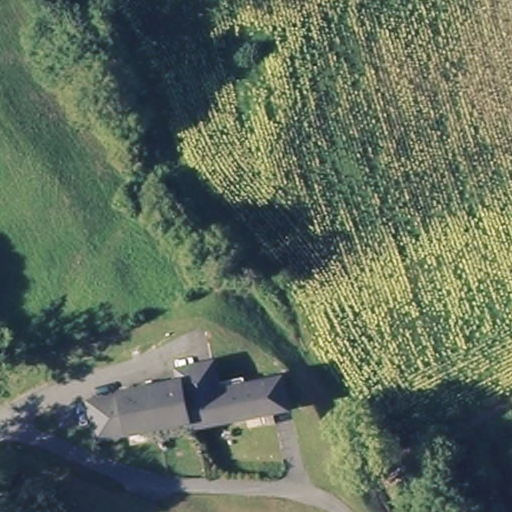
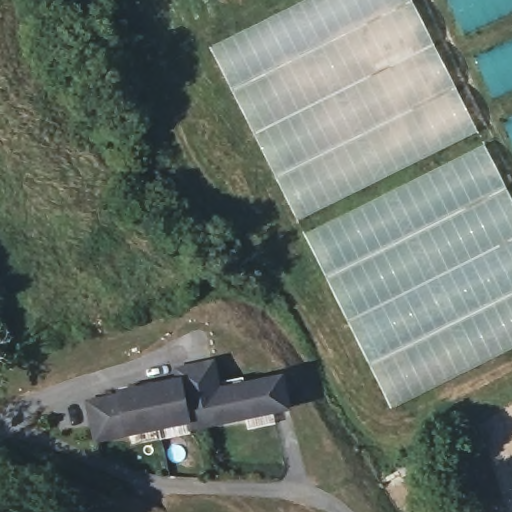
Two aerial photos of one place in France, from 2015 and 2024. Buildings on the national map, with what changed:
new [(480,132),(299,221),(212,49),(308,0),(412,0),(480,132)]
new [(466,35),(452,0),(512,0),(512,14),(466,35)]
new [(497,100),(478,60),(512,44),(512,92),(497,100)]
new [(512,199),(512,349),(392,408),(304,235),(484,145),(512,199)]
unchanged [(176,382),(173,368),(215,359),(222,388),(284,376),(292,410),(189,434),(188,425),(95,444),(87,401),(176,382)]

